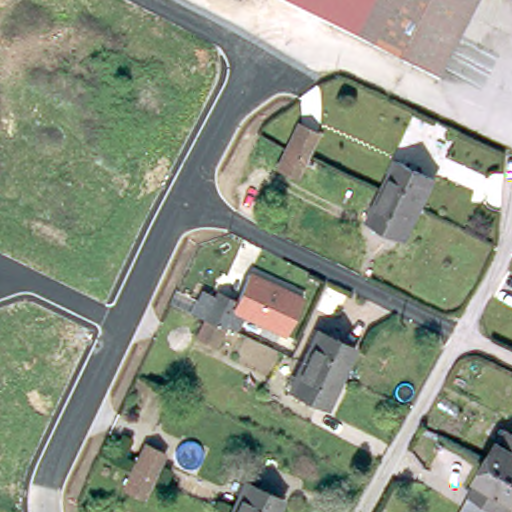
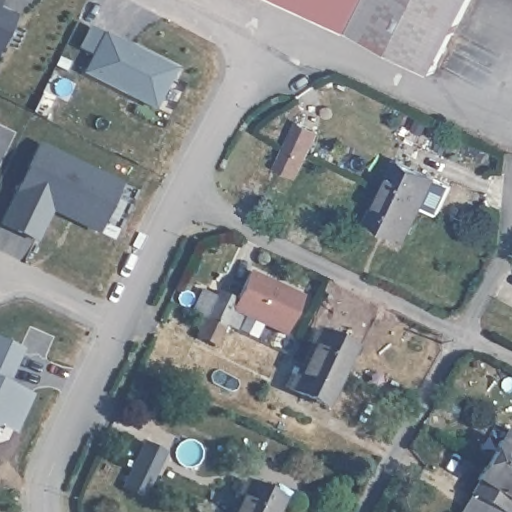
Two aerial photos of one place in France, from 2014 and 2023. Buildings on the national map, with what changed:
unchanged [(304,0),(468,0),(433,67),(304,0)]
new [(16,16),(0,49),(0,9),(16,16)]
new [(176,69),(154,110),(81,71),(103,31),(176,69)]
unchanged [(283,154),(299,122),(317,131),(303,161),(302,162),(296,176),(277,167),(283,154)]
new [(97,232),(52,211),(37,242),(0,224),(0,222),(38,142),(121,183),(97,232)]
unchanged [(418,207),(381,190),(397,157),(433,174),(419,205),(418,207)]
unchanged [(418,207),(406,232),(370,214),(380,192),(381,190),(418,207)]
demolished [(236,251),(229,266),(215,260),(227,236),(241,242),(236,251)]
new [(303,296),(284,336),(236,314),(241,304),(234,301),(249,270),(303,296)]
unchanged [(209,322),(210,320),(214,312),(201,306),(212,282),(225,289),(222,295),(241,304),(229,328),(228,330),(228,331),(219,349),(201,341),(209,322)]
unchanged [(353,347),(341,373),(340,375),(304,358),(317,330),(353,347)]
new [(9,383),(34,394),(16,432),(0,426),(0,339),(23,350),(9,383)]
unchanged [(304,358),(340,375),(325,405),(290,387),(303,361),(304,358)]
unchanged [(505,426),(498,438),(488,432),(494,420),(505,426)]
unchanged [(504,438),(506,440),(512,429),(512,465),(495,455),(496,453),(504,438)]
unchanged [(132,470),(145,443),(163,452),(152,475),(150,478),(142,496),(124,488),(132,470)]
unchanged [(481,479),(495,455),(512,465),(512,503),(507,512),(466,512),(476,495),(484,481),(481,479)]
unchanged [(246,481),(282,497),(275,512),(233,512),(232,512),(246,481)]

